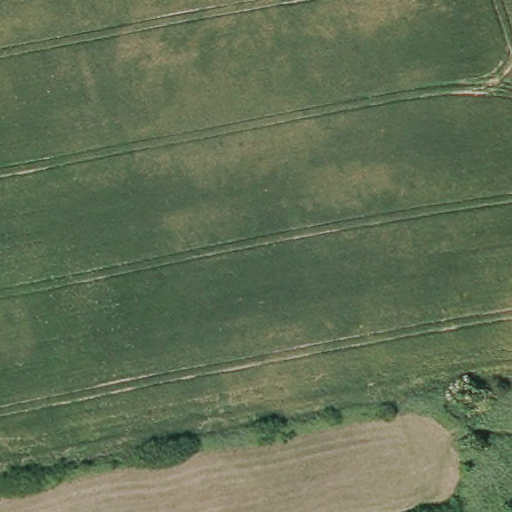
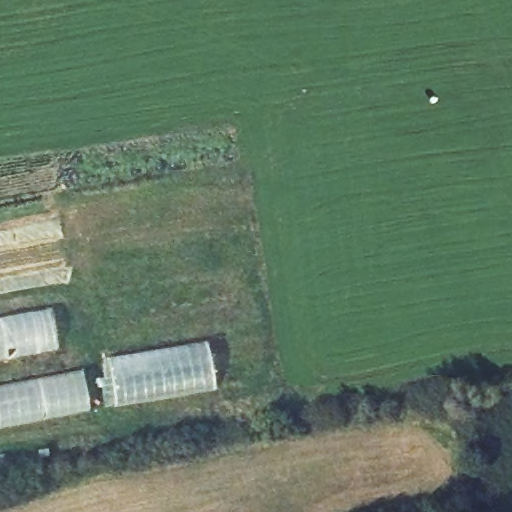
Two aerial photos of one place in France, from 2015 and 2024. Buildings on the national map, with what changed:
new [(82,346),(0,363),(0,320),(72,307),(82,346)]
new [(215,387),(115,403),(107,356),(210,340),(215,387)]
new [(94,419),(0,437),(0,390),(86,372),(94,419)]

